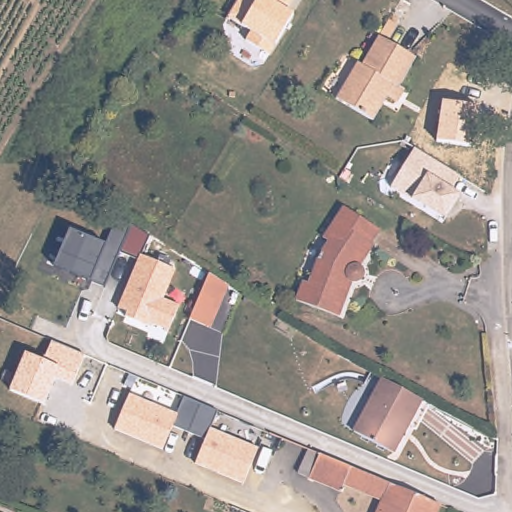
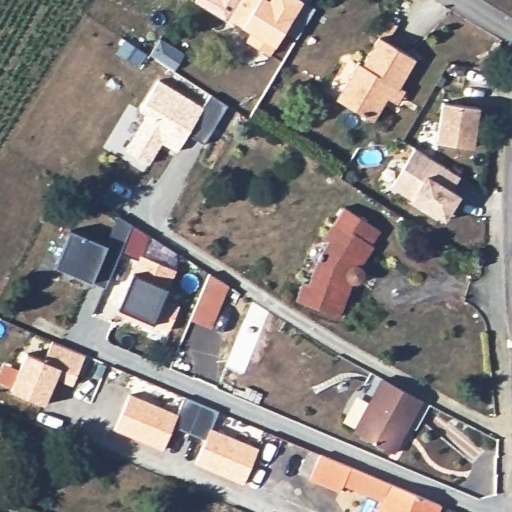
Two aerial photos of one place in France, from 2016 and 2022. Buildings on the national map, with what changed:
unchanged [(293,15),(268,55),(245,40),(249,31),(225,19),(237,0),(291,0),(283,9),(293,15)]
unchanged [(391,16),(402,22),(392,39),(420,55),(402,83),(408,86),(400,98),(391,93),(377,117),(339,94),(360,58),(365,61),(382,33),(391,16)]
new [(160,39),(184,55),(174,70),(150,54),(160,39)]
new [(146,113),(140,109),(158,79),(201,107),(210,94),(226,105),(202,144),(186,134),(175,150),(160,141),(147,162),(124,147),(146,113)]
unchanged [(480,106),(472,146),(435,140),(442,101),(480,106)]
unchanged [(458,177),(451,189),(460,195),(445,221),(412,201),(391,188),(413,149),(458,177)]
unchanged [(320,238),(332,220),(342,206),(378,230),(369,245),(372,247),(360,267),(361,268),(363,270),(364,272),(363,276),(363,279),(361,281),(359,283),(355,283),(351,283),(338,317),(293,301),(301,282),(306,283),(316,256),(326,242),(320,238)]
unchanged [(116,310),(136,259),(119,251),(105,288),(90,283),(54,266),(70,229),(105,244),(115,217),(148,235),(140,254),(176,270),(165,299),(179,305),(167,332),(116,310)]
unchanged [(188,320),(208,274),(228,285),(209,328),(188,320)]
unchanged [(70,386),(55,379),(44,405),(9,389),(25,351),(46,361),(54,342),(84,356),(70,386)]
unchanged [(378,378),(422,400),(392,454),(350,431),(378,378)]
unchanged [(176,413),(184,399),(216,411),(209,428),(258,446),(245,484),(195,465),(205,439),(174,426),(164,450),(114,430),(129,395),(176,413)]
unchanged [(378,497),(342,481),(338,489),(295,469),(307,444),(441,501),(437,512),(372,512),(378,497)]
unchanged [(7,512),(0,512),(0,509),(7,512)]

